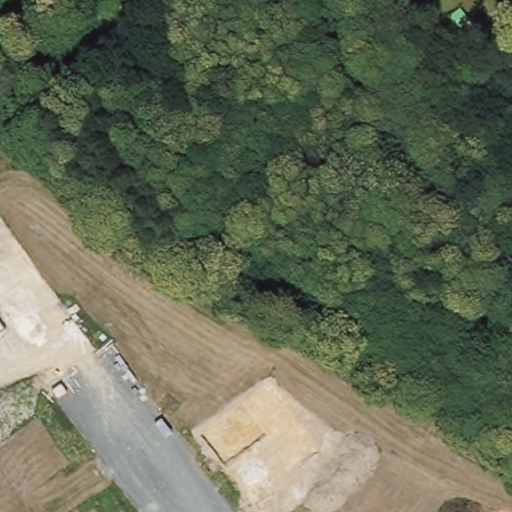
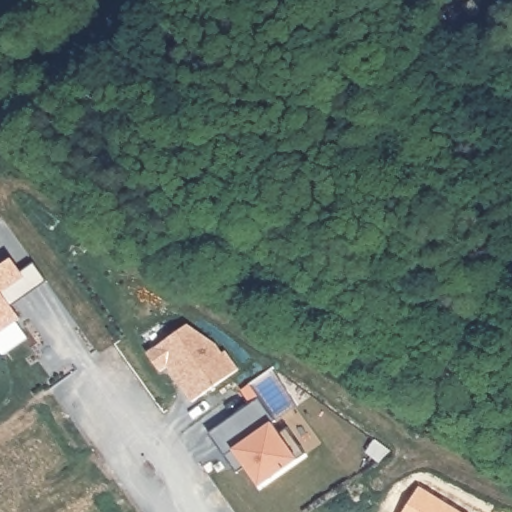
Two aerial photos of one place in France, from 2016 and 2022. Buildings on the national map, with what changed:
new [(24,277),(37,268),(54,291),(18,317),(26,328),(0,347),(0,274),(14,263),(24,277)]
new [(197,316),(214,340),(209,343),(216,352),(224,347),(243,373),(199,406),(172,370),(163,376),(146,352),(197,316)]
new [(298,460),(258,486),(243,467),(235,472),(209,432),(258,397),(274,421),(273,422),(281,433),(288,428),(305,452),(298,460)]

